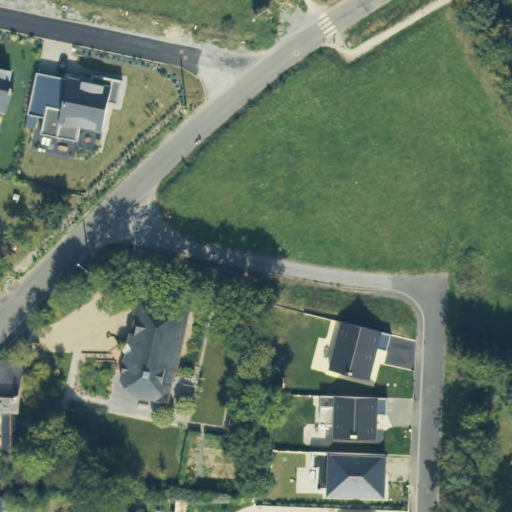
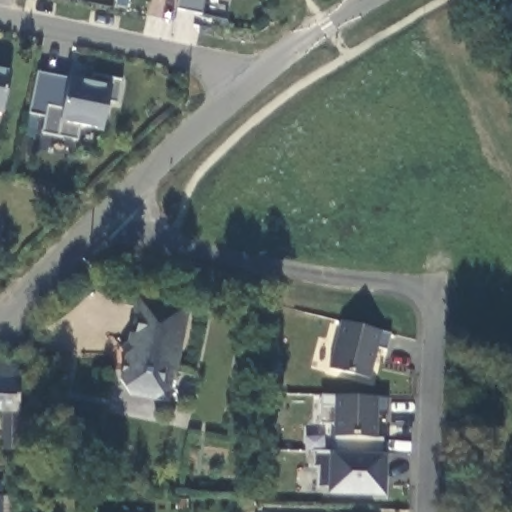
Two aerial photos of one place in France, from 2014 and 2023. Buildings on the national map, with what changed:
new [(176,0),(203,0),(200,15),(174,10),(176,0)]
unchanged [(3,113),(0,112),(0,70),(12,72),(3,113)]
unchanged [(69,79),(69,78),(90,82),(92,75),(124,81),(119,104),(110,101),(104,131),(79,126),(76,140),(43,135),(46,119),(27,115),(39,74),(69,79)]
unchanged [(119,384),(127,344),(132,345),(141,301),(189,311),(176,376),(173,378),(167,407),(130,400),(119,384)]
unchanged [(340,320),(389,331),(391,332),(386,349),(377,346),(370,377),(329,368),(340,320)]
unchanged [(19,414),(17,467),(5,466),(6,448),(1,448),(2,411),(0,411),(0,361),(21,361),(19,414)]
unchanged [(387,396),(386,413),(376,413),(375,437),(332,436),(332,423),(318,423),(320,404),(320,395),(320,394),(380,396),(387,396)]
unchanged [(377,494),(327,492),(327,487),(315,486),(316,466),(311,466),(312,450),(384,452),(383,469),(382,494),(377,494)]
unchanged [(11,512),(0,512),(0,492),(11,492),(11,512)]

